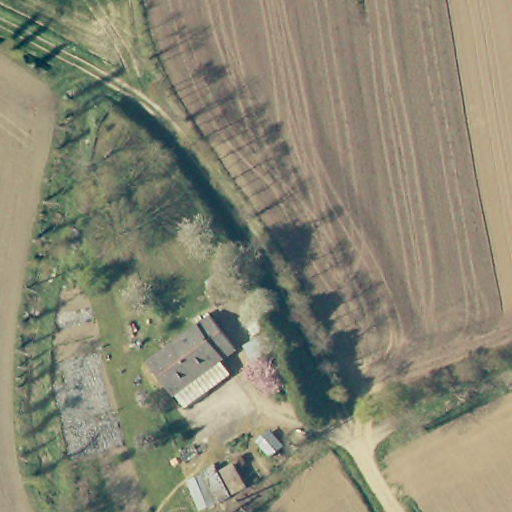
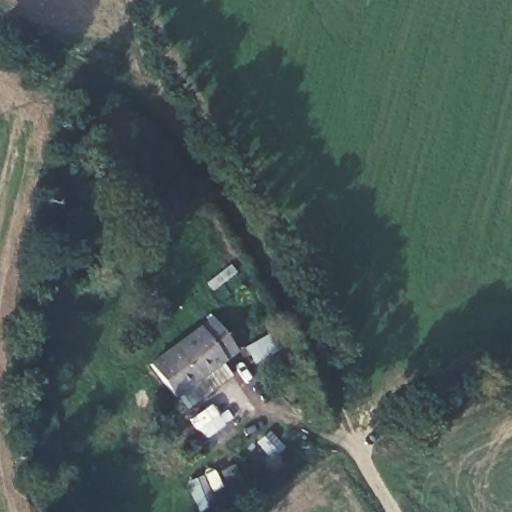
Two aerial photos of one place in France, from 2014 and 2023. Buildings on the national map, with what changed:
unchanged [(218,317),(240,352),(217,366),(226,379),(201,393),(192,379),(170,392),(151,356),(218,317)]
unchanged [(252,357),(245,343),(275,330),(281,345),(252,357)]
unchanged [(256,426),(270,444),(260,452),(245,435),(256,426)]
unchanged [(215,466),(220,473),(236,464),(250,484),(201,512),(185,486),(215,466)]

